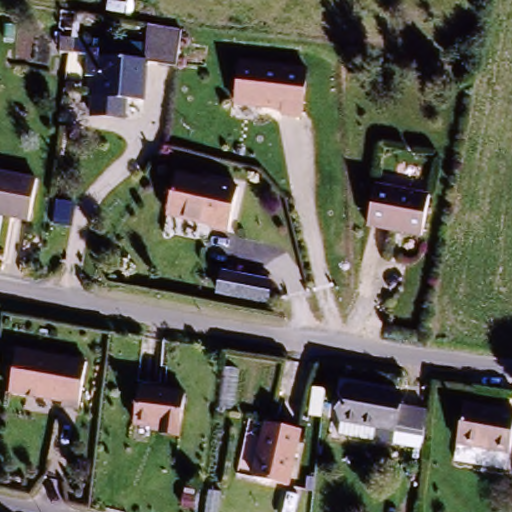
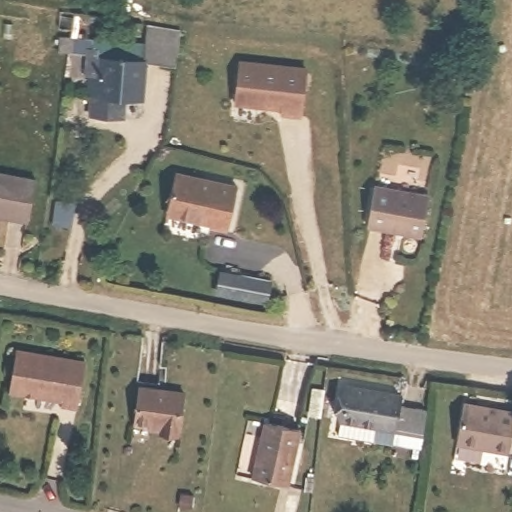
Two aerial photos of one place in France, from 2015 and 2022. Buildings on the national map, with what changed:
unchanged [(90,82),(84,81),(86,56),(57,52),(56,37),(71,39),(72,11),(84,14),(82,34),(95,35),(96,39),(145,45),(147,24),(179,32),(175,66),(147,63),(144,99),(87,97),(90,82)]
unchanged [(241,61),(307,68),(304,119),(281,116),(281,111),(236,107),(241,61)]
unchanged [(227,227),(160,212),(172,166),(239,181),(227,227)]
unchanged [(24,222),(0,218),(0,172),(32,177),(24,222)]
unchanged [(364,221),(375,179),(429,191),(417,234),(364,221)]
unchanged [(272,278),(267,308),(212,295),(217,267),(272,278)]
unchanged [(85,357),(79,403),(8,390),(17,343),(85,357)]
unchanged [(400,389),(397,401),(426,406),(421,435),(332,421),(338,375),(400,389)]
unchanged [(141,387),(187,393),(182,440),(160,436),(161,430),(133,427),(141,387)]
unchanged [(511,419),(504,458),(456,450),(462,410),(511,419)]
unchanged [(306,427),(290,482),(251,472),(265,418),(306,427)]

